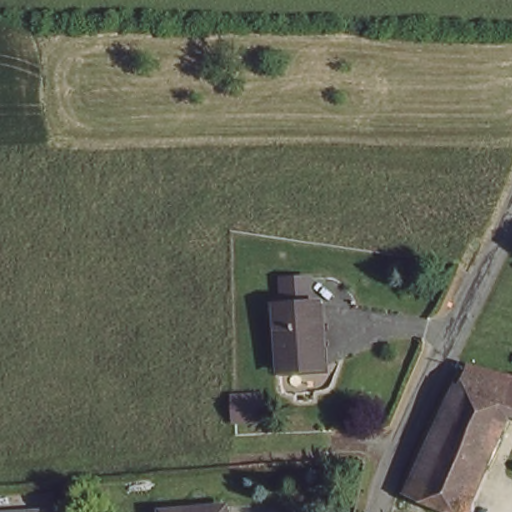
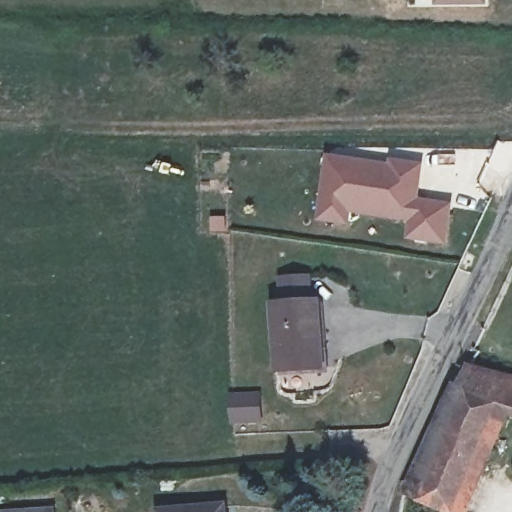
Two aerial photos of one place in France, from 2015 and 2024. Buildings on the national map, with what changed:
new [(486,5),(434,6),(434,0),(486,0),(486,5)]
new [(422,164),(420,200),(452,202),(448,247),(414,245),(415,229),(320,222),(324,156),(422,164)]
unchanged [(275,313),(285,313),(284,288),(312,287),(312,312),(321,312),(321,328),(295,328),(275,328),(275,313)]
unchanged [(317,375),(277,376),(275,328),(295,328),(321,328),(322,356),(322,375),(317,375)]
unchanged [(495,413),(450,512),(446,512),(399,491),(455,384),(462,386),(470,368),(512,381),(512,418),(495,413)]
new [(255,397),(255,422),(230,423),(230,398),(255,397)]
unchanged [(57,512),(0,512),(0,509),(57,503),(57,512)]
unchanged [(226,512),(206,512),(225,510),(226,512)]

